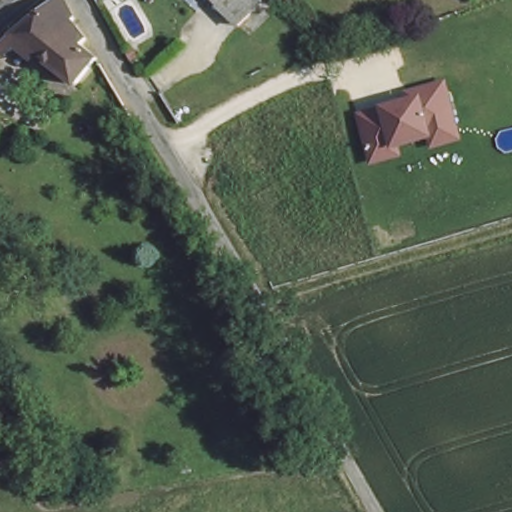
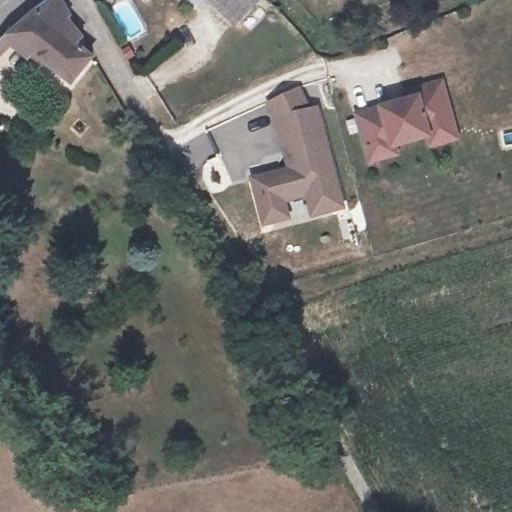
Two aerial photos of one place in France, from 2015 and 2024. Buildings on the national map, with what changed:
unchanged [(71,20),(65,24),(78,38),(73,41),(89,60),(53,91),(18,46),(4,57),(0,52),(0,36),(43,0),(56,0),(71,20)]
unchanged [(214,7),(207,0),(222,0),(214,7)]
unchanged [(366,164),(352,111),(377,105),(405,97),(405,85),(443,77),(460,139),(428,148),(424,140),(398,148),(400,155),(366,164)]
new [(346,210),(310,220),(305,197),(286,202),(291,220),(261,227),(248,176),(285,167),(274,120),(265,102),(301,86),(311,107),(318,105),(346,210)]

